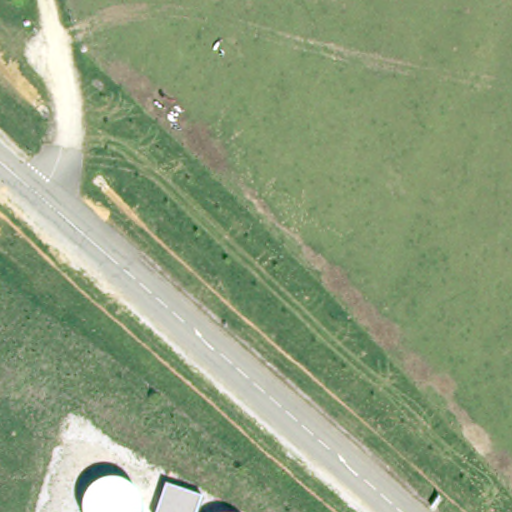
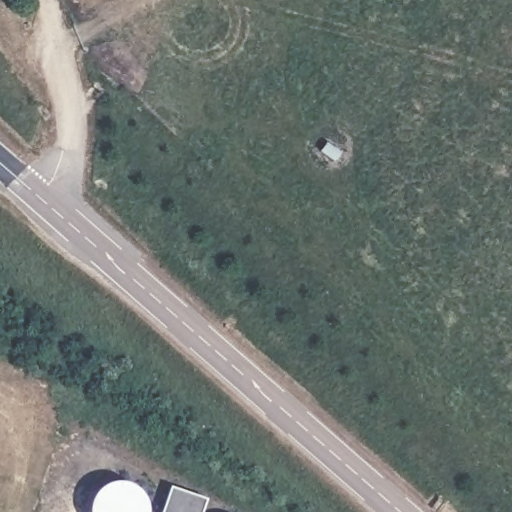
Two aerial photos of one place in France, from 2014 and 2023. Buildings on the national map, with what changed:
unchanged [(202,501),(199,512),(162,512),(170,490),(202,501)]

